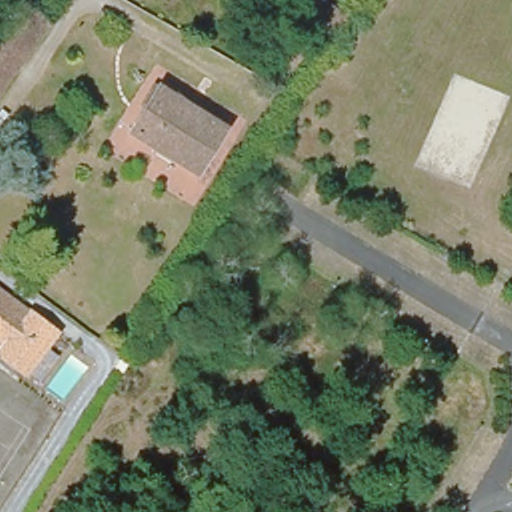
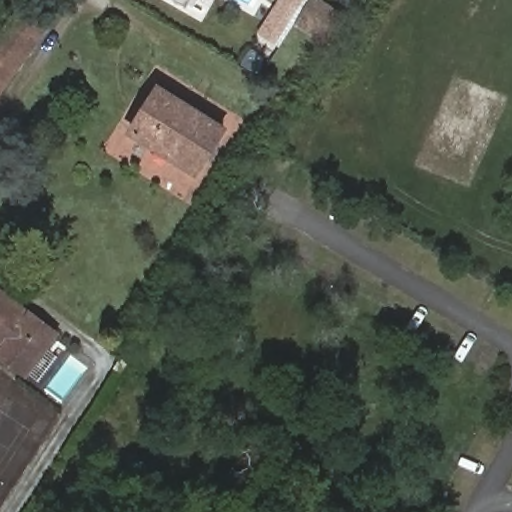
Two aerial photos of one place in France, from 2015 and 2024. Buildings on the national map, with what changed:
new [(175,0),(197,0),(192,10),(175,0)]
new [(281,49),(257,34),(278,0),(310,0),(297,23),(281,49)]
unchanged [(329,41),(297,23),(310,0),(315,0),(344,16),(329,41)]
unchanged [(48,25),(0,93),(0,38),(22,7),(48,25)]
unchanged [(159,92),(222,131),(196,174),(134,134),(159,92)]
unchanged [(6,356),(9,351),(0,345),(0,291),(1,292),(60,334),(31,374),(6,356)]

